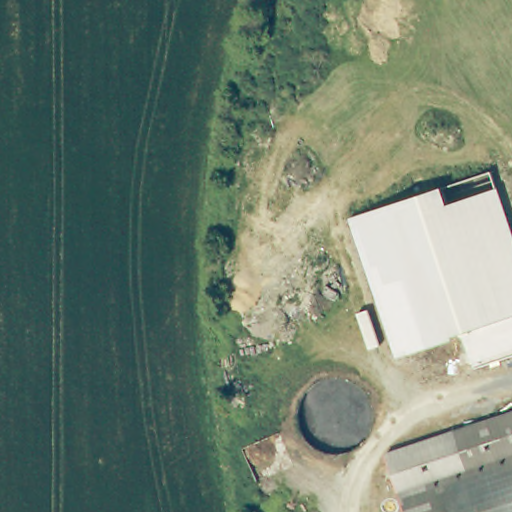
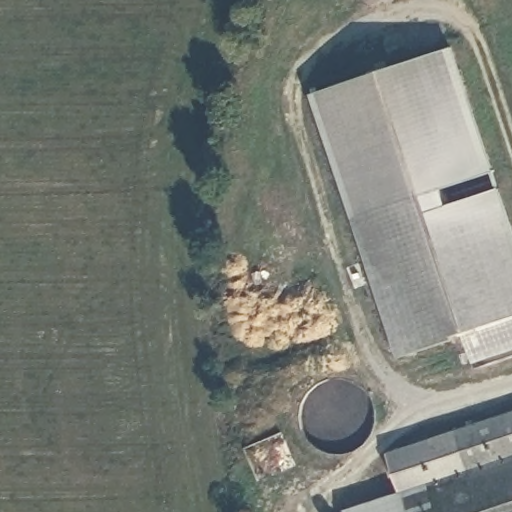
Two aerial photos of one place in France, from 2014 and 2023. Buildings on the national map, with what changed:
new [(308,95),(452,47),(493,171),(442,187),(349,219),(308,95)]
unchanged [(512,352),(472,364),(462,334),(454,336),(456,340),(397,358),(349,219),(442,187),(448,204),(498,188),(512,230),(512,352)]
new [(386,453),(512,412),(512,512),(406,512),(386,453)]
demolished [(465,470),(452,431),(512,412),(512,512),(436,512),(429,492),(426,485),(465,470)]

